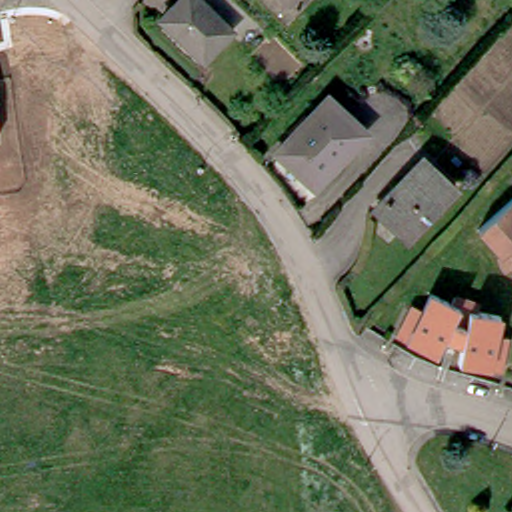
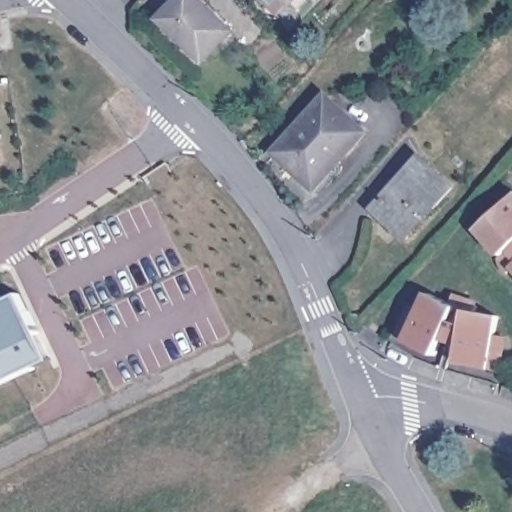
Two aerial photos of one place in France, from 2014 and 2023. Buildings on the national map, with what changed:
unchanged [(179,0),(201,0),(232,31),(203,62),(160,19),(179,0)]
unchanged [(326,94),(366,131),(315,189),(274,152),(326,94)]
unchanged [(422,157),(453,185),(405,238),(375,210),(422,157)]
unchanged [(511,269),(509,269),(503,262),(500,253),(503,251),(480,227),(512,198),(512,269),(511,269)]
unchanged [(507,344),(503,369),(460,360),(463,337),(448,332),(437,354),(398,337),(409,313),(413,304),(424,309),(432,293),(454,302),(455,296),(468,297),(479,302),(478,310),(502,314),(498,333),(509,335),(507,344)]
new [(44,360),(0,381),(0,306),(18,297),(44,360)]

